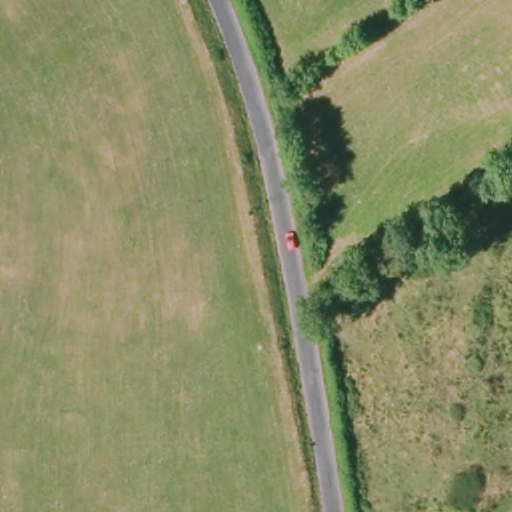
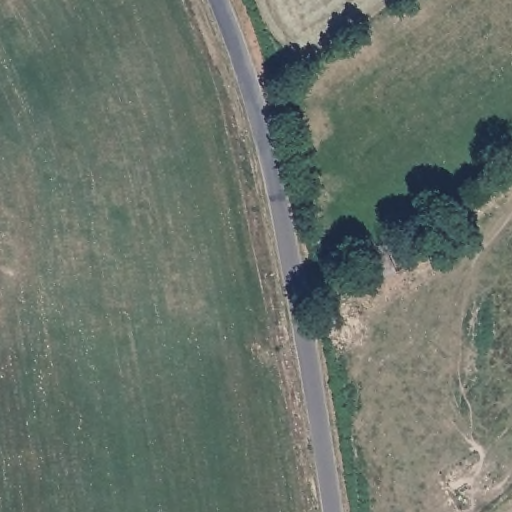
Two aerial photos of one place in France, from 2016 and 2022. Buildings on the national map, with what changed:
unchanged [(351,259),(385,249),(395,270),(360,286),(351,259)]

